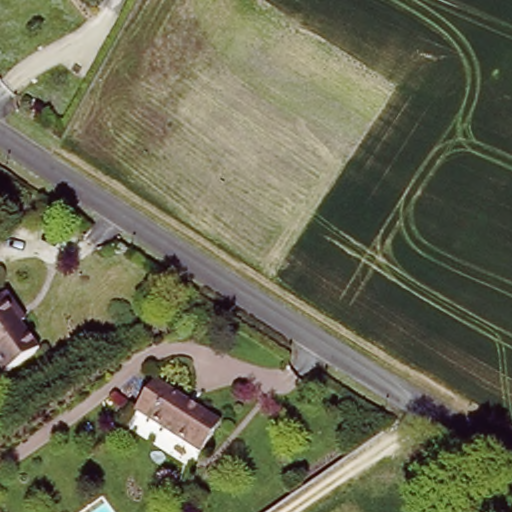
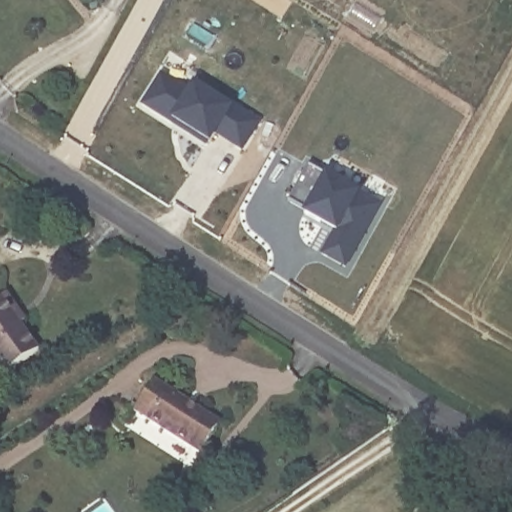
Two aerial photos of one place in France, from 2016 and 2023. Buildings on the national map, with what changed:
new [(175,125),(146,107),(164,77),(192,94),(197,86),(235,108),(236,106),(264,123),(247,150),(220,134),(215,143),(212,147),(175,125)]
new [(346,269),(322,254),(334,231),(302,214),(306,208),(291,199),(309,165),(325,174),(327,171),(363,191),(382,203),(346,269)]
unchanged [(0,364),(0,301),(12,293),(22,308),(30,320),(24,325),(40,351),(7,373),(0,364)]
unchanged [(159,378),(222,416),(205,445),(141,407),(159,378)]

